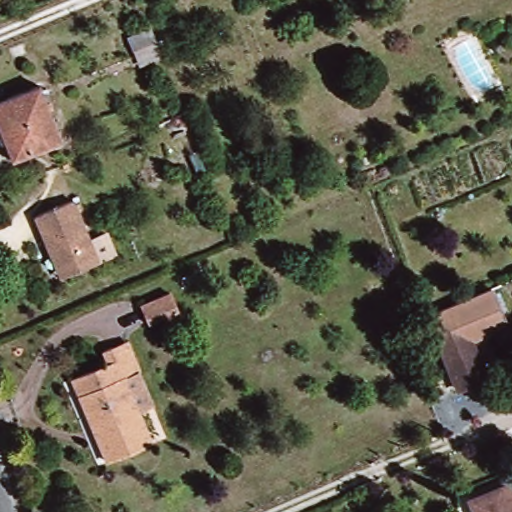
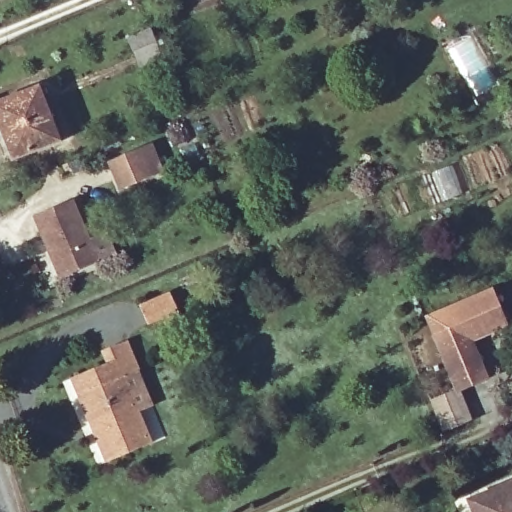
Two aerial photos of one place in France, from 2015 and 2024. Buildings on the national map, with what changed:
unchanged [(15,160),(0,122),(0,101),(40,85),(62,141),(15,160)]
new [(154,144),(165,172),(119,192),(107,161),(154,144)]
unchanged [(67,275),(59,253),(52,255),(36,219),(75,202),(100,260),(67,275)]
unchanged [(479,382),(452,394),(420,321),(483,294),(500,330),(463,345),(479,382)]
unchanged [(148,329),(141,312),(173,300),(180,317),(184,325),(170,331),(166,322),(148,329)]
unchanged [(110,467),(108,461),(75,385),(112,368),(107,357),(129,348),(140,376),(154,410),(140,415),(151,442),(154,448),(110,467)]
unchanged [(512,506),(512,512),(498,512),(512,506)]

